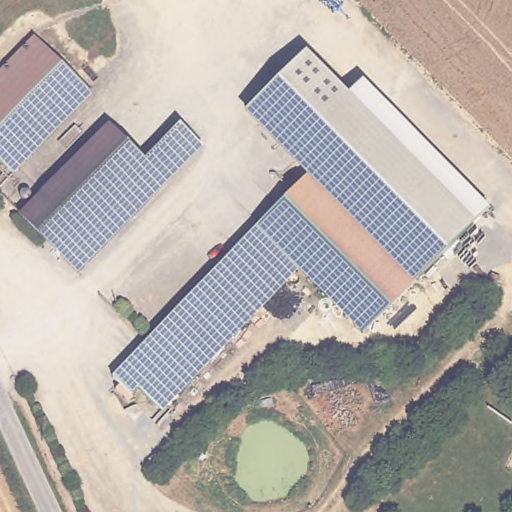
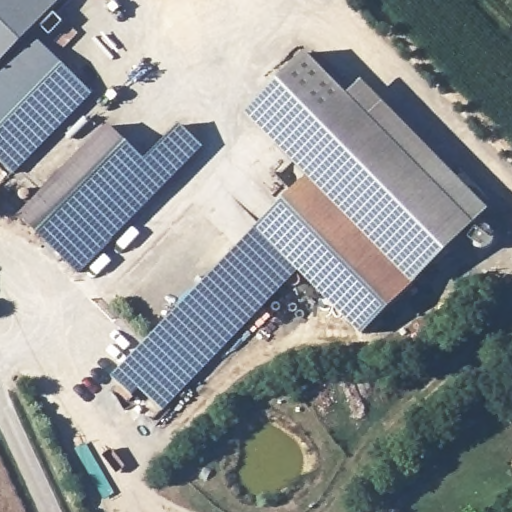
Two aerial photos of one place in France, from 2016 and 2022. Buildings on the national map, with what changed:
new [(0,0),(63,0),(0,65),(0,0)]
unchanged [(6,174),(0,167),(0,87),(46,44),(91,92),(82,103),(6,174)]
unchanged [(306,176),(244,112),(303,52),(348,95),(362,80),(488,210),(412,282),(362,334),(297,270),(164,412),(137,387),(131,395),(112,376),(306,176)]
unchanged [(72,227),(38,189),(115,123),(147,160),(72,227)]
unchanged [(204,159),(74,276),(17,213),(38,189),(72,227),(147,160),(179,131),(204,159)]

